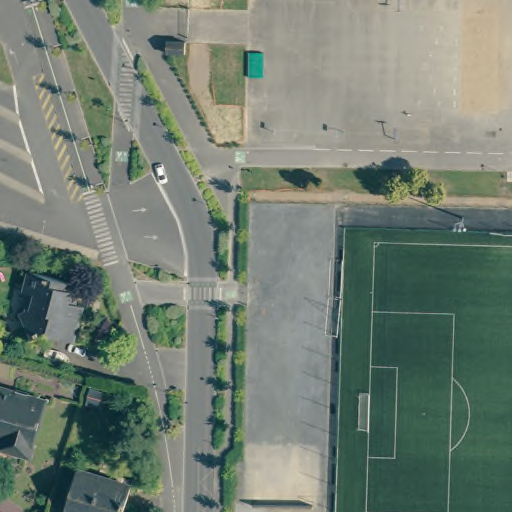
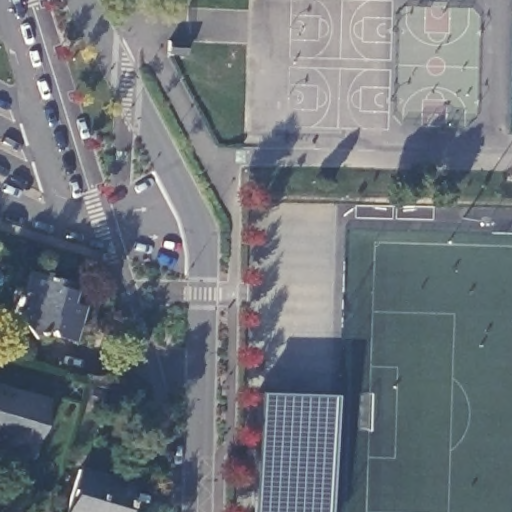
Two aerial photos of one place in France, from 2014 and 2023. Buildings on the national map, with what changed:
unchanged [(186,41),(185,54),(167,53),(167,40),(186,41)]
demolished [(256,58),(256,71),(246,70),(246,57),(256,58)]
unchanged [(72,341),(52,335),(47,328),(31,338),(17,313),(27,307),(31,293),(23,291),(29,270),(72,282),(77,288),(74,302),(82,305),(72,341)]
unchanged [(35,452),(15,447),(18,437),(0,432),(0,380),(52,394),(35,452)]
new [(331,394),(326,512),(253,512),(255,391),(331,394)]
unchanged [(132,484),(124,512),(64,512),(77,468),(132,484)]

